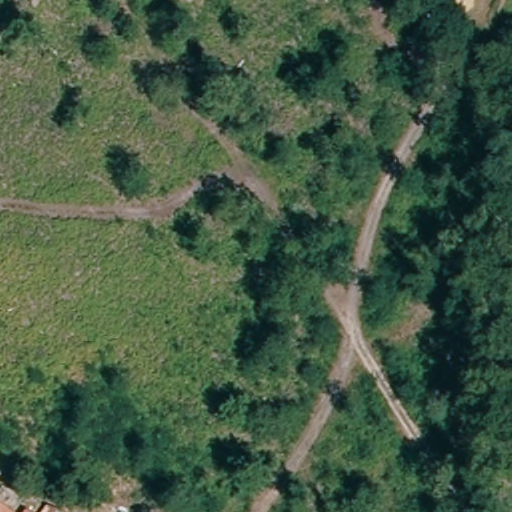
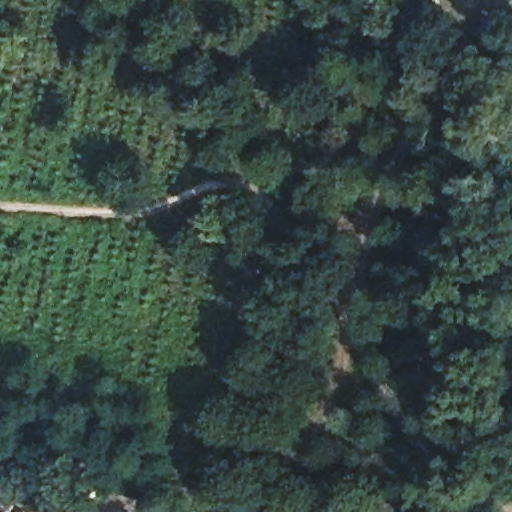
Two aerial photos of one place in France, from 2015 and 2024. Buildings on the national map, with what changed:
unchanged [(1,509),(6,512),(0,512),(0,511),(1,509)]
unchanged [(51,509),(61,512),(49,512),(51,509)]

